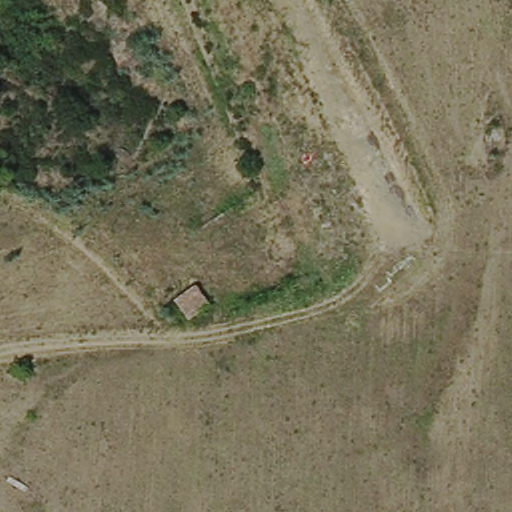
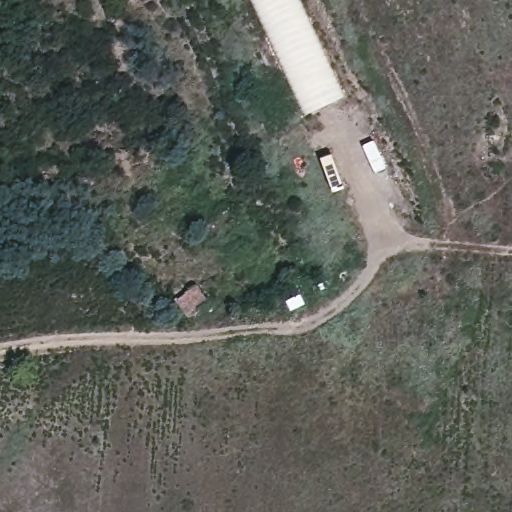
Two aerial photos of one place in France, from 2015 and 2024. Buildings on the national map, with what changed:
new [(307,118),(253,0),(298,0),(344,99),(307,118)]
unchanged [(175,294),(200,284),(214,311),(188,322),(175,294)]

